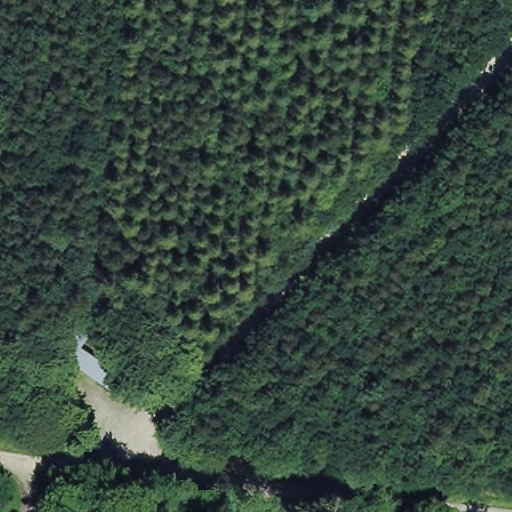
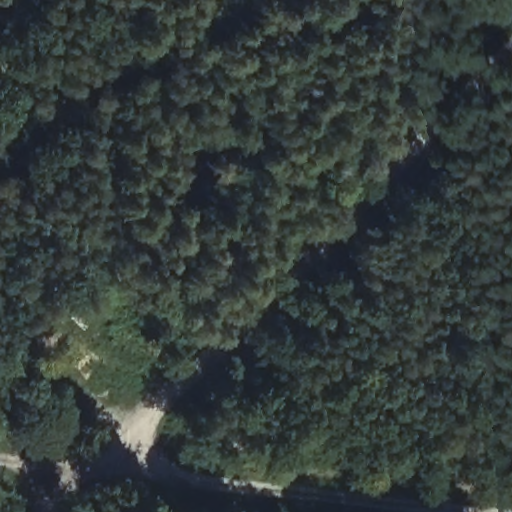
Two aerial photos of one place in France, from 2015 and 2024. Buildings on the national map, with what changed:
unchanged [(107,385),(48,346),(68,322),(81,331),(73,340),(120,370),(107,385)]

